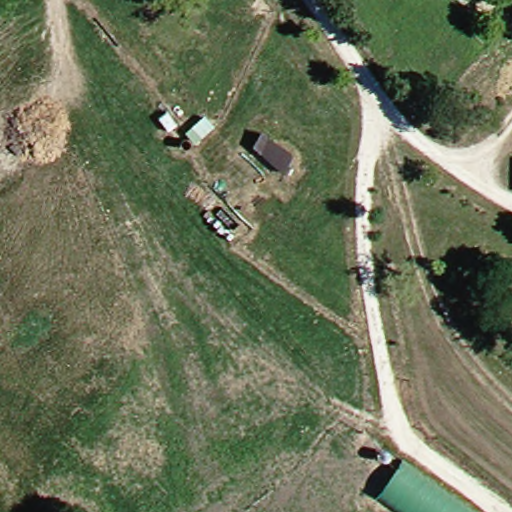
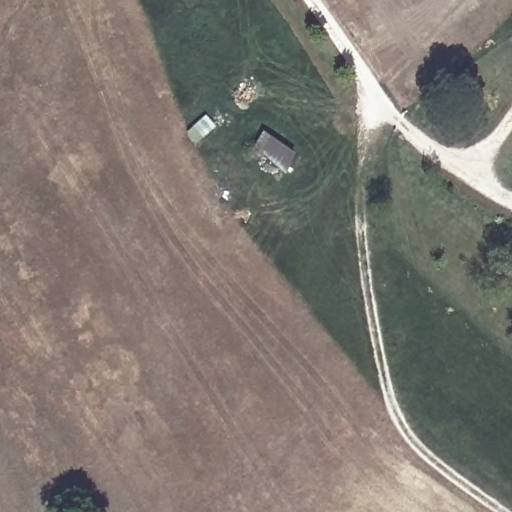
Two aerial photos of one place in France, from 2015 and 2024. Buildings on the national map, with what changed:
unchanged [(201,119),(210,130),(194,143),(185,132),(201,119)]
unchanged [(292,154),(283,167),(253,148),(261,135),(292,154)]
demolished [(392,467),(458,512),(390,512),(370,498),(392,467)]

